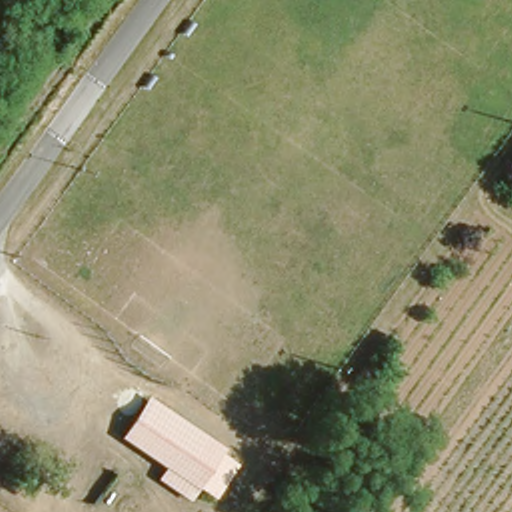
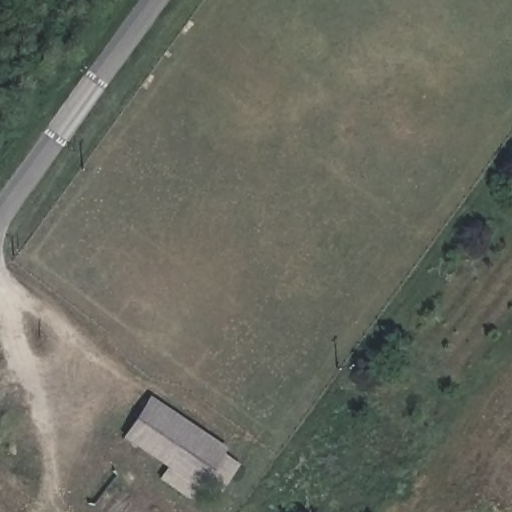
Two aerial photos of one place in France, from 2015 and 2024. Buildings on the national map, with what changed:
unchanged [(215,488),(204,479),(194,494),(161,471),(171,457),(130,428),(150,397),(224,448),(236,457),(215,488)]

